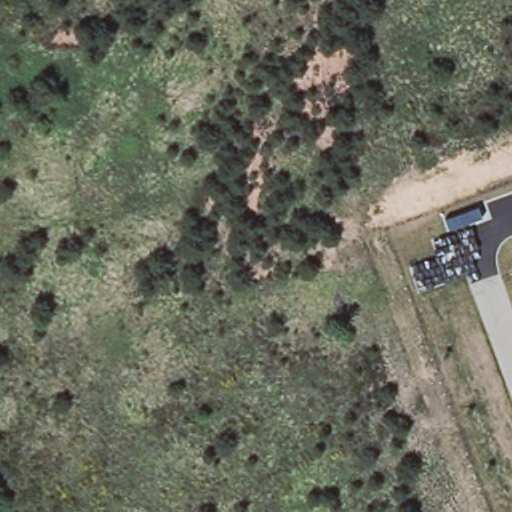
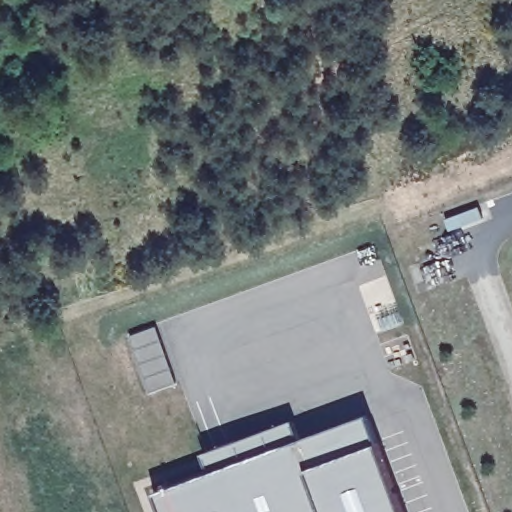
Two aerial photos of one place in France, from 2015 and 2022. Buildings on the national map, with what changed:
new [(300,440),(367,416),(377,444),(402,512),(162,512),(155,492),(212,472),(300,440)]

